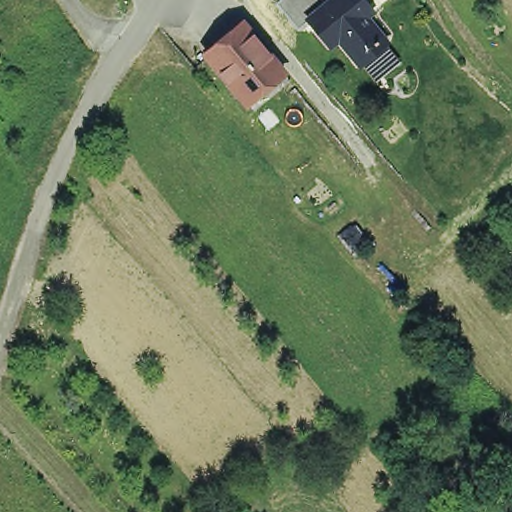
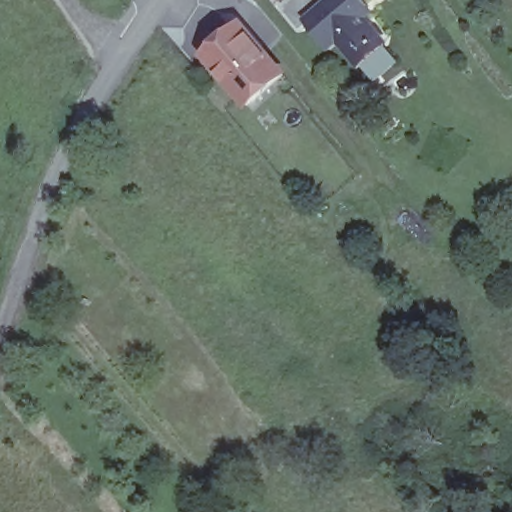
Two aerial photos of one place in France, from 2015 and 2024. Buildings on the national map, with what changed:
unchanged [(322,0),(327,5),(307,21),(308,22),(298,30),(277,4),(281,0),(322,0)]
unchanged [(361,59),(359,61),(357,62),(338,39),(332,31),(322,39),(308,22),(307,21),(327,5),(333,0),(364,0),(368,6),(361,12),(365,17),(384,40),(382,42),(380,43),(397,63),(377,79),(361,59)]
unchanged [(254,106),(245,95),(242,92),(242,94),(240,95),(228,81),(230,80),(231,79),(206,49),(242,19),(280,65),(290,76),(254,106)]

